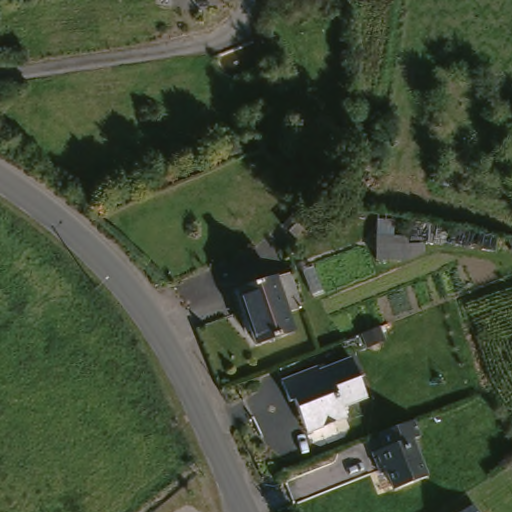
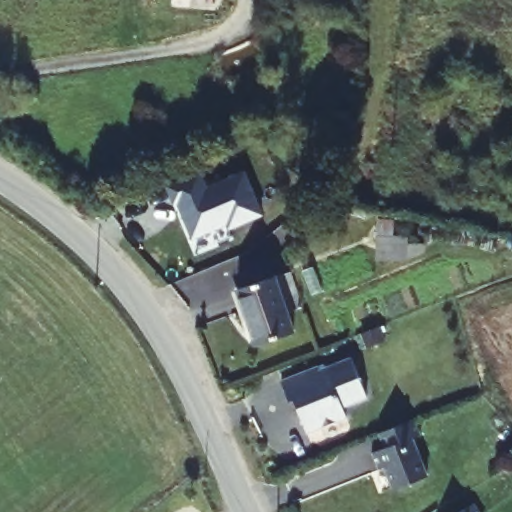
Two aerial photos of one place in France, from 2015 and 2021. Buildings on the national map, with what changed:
new [(197,174),(204,191),(242,175),(258,216),(226,229),(224,225),(189,239),(178,210),(184,208),(182,202),(172,206),(164,187),(197,174)]
unchanged [(361,229),(345,226),(349,207),(366,211),(361,229)]
unchanged [(409,246),(408,261),(377,260),(378,244),(409,246)]
unchanged [(286,279),(293,299),(280,304),(291,337),(252,351),(232,297),(286,279)]
unchanged [(304,410),(298,394),(293,397),(285,376),(321,362),(323,366),(355,353),(371,392),(346,401),(350,412),(316,425),(311,427),(304,410)]
unchanged [(402,431),(414,426),(415,427),(420,442),(413,444),(427,483),(394,496),(386,475),(380,477),(374,459),(394,451),(389,437),(402,431)]
unchanged [(470,507),(473,512),(462,512),(470,507)]

